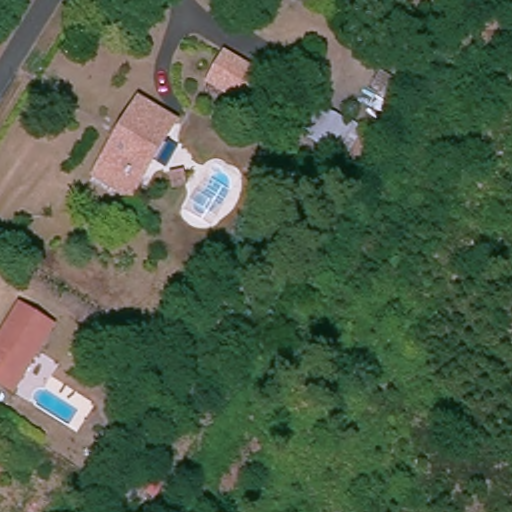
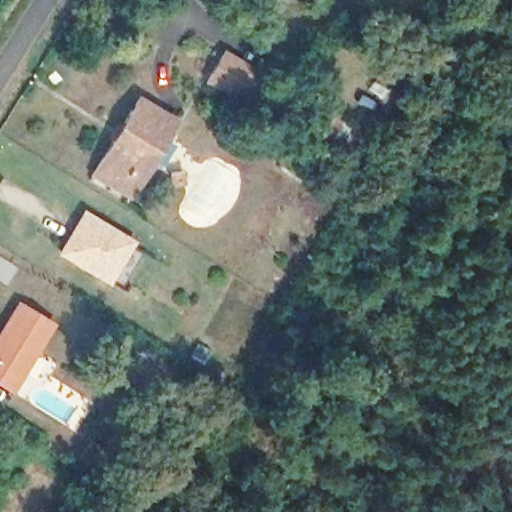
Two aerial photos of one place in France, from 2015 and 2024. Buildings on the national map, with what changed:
unchanged [(212,62),(219,51),(255,72),(238,102),(201,80),(212,62)]
unchanged [(103,157),(140,97),(177,121),(128,203),(119,197),(91,179),(103,157)]
unchanged [(310,102),(359,129),(340,160),(292,136),(310,102)]
new [(58,254),(84,211),(135,241),(110,285),(58,254)]
unchanged [(52,322),(46,332),(12,390),(0,382),(0,333),(19,302),(52,322)]

